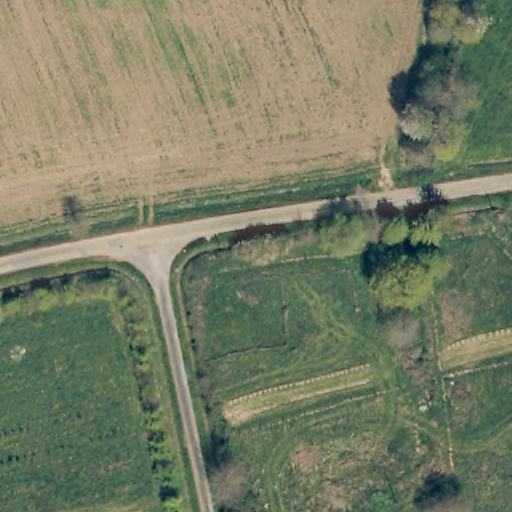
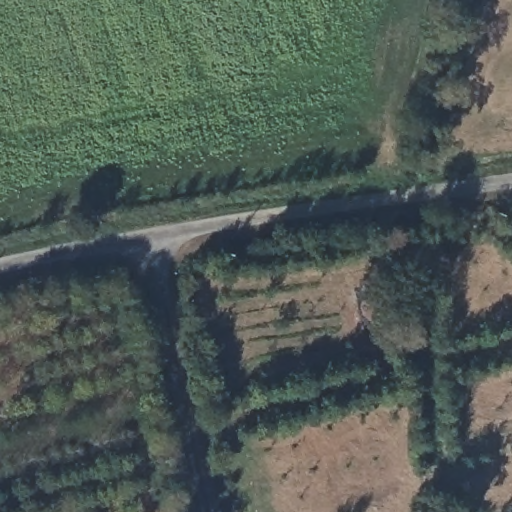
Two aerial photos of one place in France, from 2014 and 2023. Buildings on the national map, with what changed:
[]

